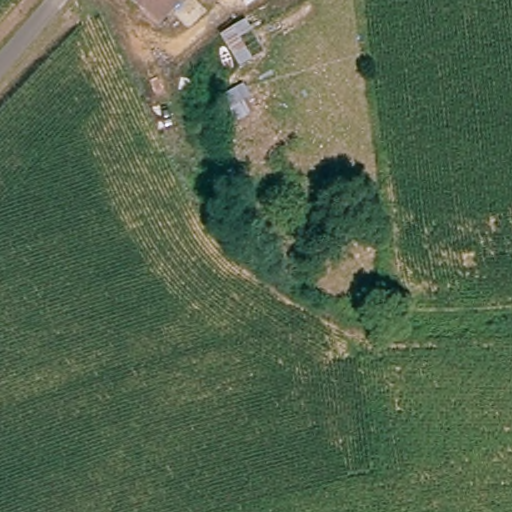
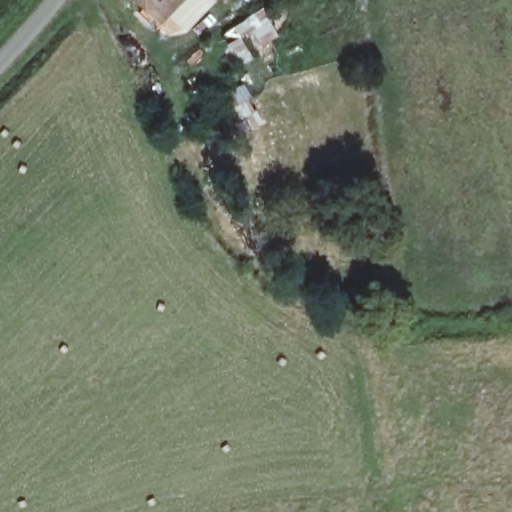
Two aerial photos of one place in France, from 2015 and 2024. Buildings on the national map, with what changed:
unchanged [(151,22),(128,0),(173,0),(151,22)]

